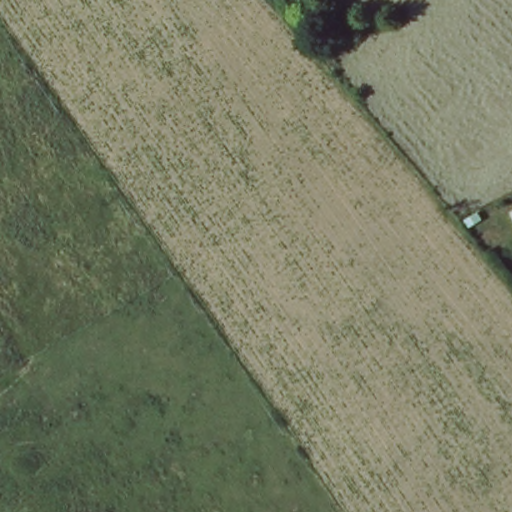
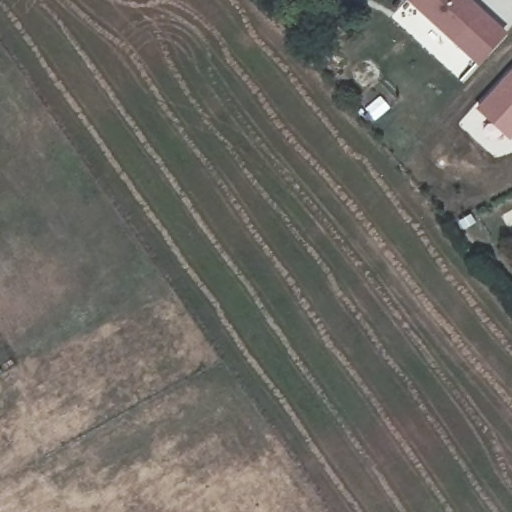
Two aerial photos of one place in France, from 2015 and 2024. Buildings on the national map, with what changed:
new [(407,0),(471,0),(483,11),(453,43),(407,0)]
new [(507,32),(478,64),(453,43),(483,11),(507,32)]
new [(512,138),(510,140),(475,109),(512,68),(512,138)]

